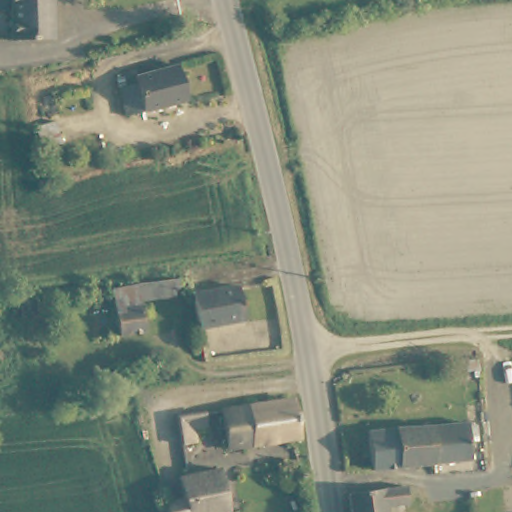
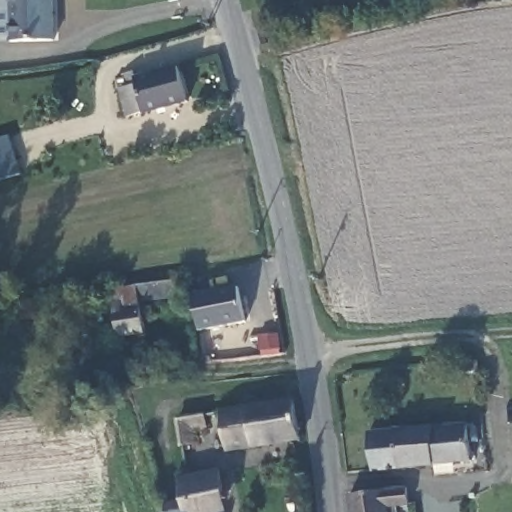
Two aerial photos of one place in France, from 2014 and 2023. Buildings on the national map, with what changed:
unchanged [(10,15),(0,16),(0,0),(51,0),(53,44),(11,45),(10,15)]
unchanged [(187,105),(127,121),(120,93),(124,91),(122,79),(134,74),(137,82),(178,71),(187,105)]
new [(0,172),(0,140),(7,138),(17,170),(4,184),(0,172)]
unchanged [(176,291),(167,296),(134,299),(139,337),(115,340),(105,293),(175,284),(176,291)]
unchanged [(192,294),(237,285),(244,319),(198,329),(192,294)]
unchanged [(227,448),(220,411),(293,399),(298,436),(227,448)]
unchanged [(207,426),(194,429),(196,443),(182,444),(179,418),(205,413),(207,426)]
unchanged [(373,472),(370,432),(468,424),(471,460),(373,472)]
unchanged [(167,509),(184,503),(180,483),(220,474),(225,501),(212,505),(213,512),(168,512),(167,509)]
unchanged [(407,487),(408,504),(386,507),(387,512),(352,512),(350,495),(407,487)]

